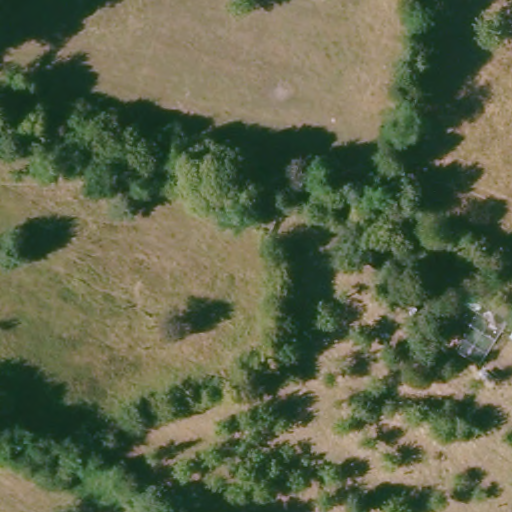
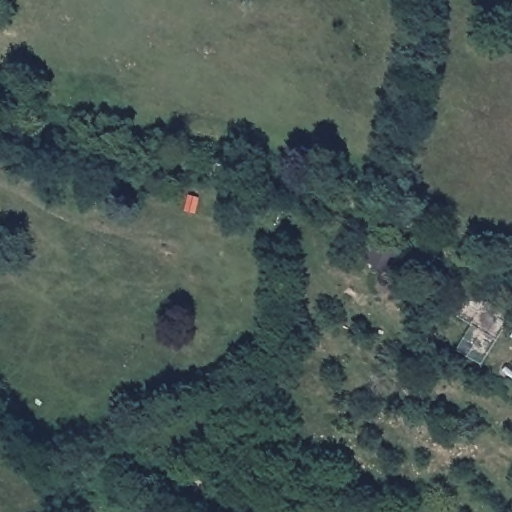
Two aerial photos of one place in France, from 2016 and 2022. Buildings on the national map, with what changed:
[]

